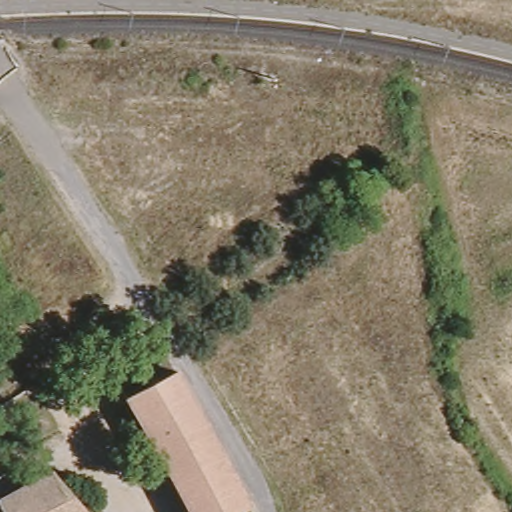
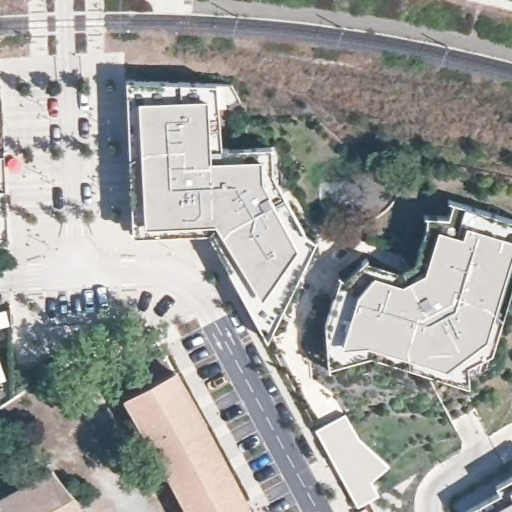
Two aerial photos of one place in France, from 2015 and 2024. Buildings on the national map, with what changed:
new [(7,241),(0,241),(0,80),(1,79),(7,241)]
new [(309,255),(294,276),(296,278),(285,291),(291,295),(278,318),(249,303),(253,295),(252,269),(238,272),(218,237),(226,228),(210,217),(166,219),(151,226),(144,212),(151,209),(143,193),(150,190),(142,173),(148,170),(140,152),(148,149),(139,132),(147,129),(140,113),(148,109),(139,92),(126,92),(126,80),(154,80),(231,84),(240,100),(231,105),(206,106),(207,122),(208,149),(228,148),(228,155),(243,154),(243,147),(271,146),(272,173),(279,185),(279,186),(305,232),(315,239),(309,255)]
new [(139,92),(148,109),(140,113),(147,129),(139,132),(148,149),(140,152),(148,170),(142,173),(150,190),(143,193),(151,209),(144,212),(151,226),(166,219),(210,217),(226,228),(213,243),(208,233),(132,236),(126,92),(139,92)]
new [(218,121),(219,148),(208,149),(207,122),(218,121)]
new [(424,371),(423,358),(408,360),(408,366),(388,360),(387,347),(370,348),(368,336),(351,337),(347,352),(327,354),(325,323),(334,294),(339,295),(348,283),(343,280),(364,260),(388,280),(402,284),(409,280),(412,270),(426,225),(426,215),(439,216),(448,216),(453,201),(512,219),(512,225),(504,235),(512,242),(512,255),(502,268),(508,274),(498,287),(509,295),(491,353),(485,355),(484,356),(467,365),(469,385),(424,371)]
new [(504,235),(512,225),(512,242),(504,235)]
new [(213,243),(218,237),(238,272),(252,269),(253,295),(249,303),(278,318),(266,340),(213,243)]
new [(344,362),(351,337),(368,336),(370,355),(344,362)]
unchanged [(253,505),(240,512),(192,512),(175,481),(145,425),(137,411),(131,401),(122,383),(140,374),(143,366),(153,361),(169,353),(172,359),(231,465),(253,505)]
demolished [(64,386),(45,398),(38,387),(36,383),(54,372),(64,386)]
new [(372,480),(379,494),(358,506),(321,439),(316,430),(345,413),(359,438),(390,465),(372,480)]
demolished [(0,426),(0,417),(4,423),(0,426)]
new [(464,511),(500,493),(495,483),(512,475),(512,512),(464,512),(464,511)]
unchanged [(0,509),(15,502),(35,490),(61,478),(85,506),(90,512),(0,512),(0,509)]
new [(366,508),(368,512),(358,512),(366,508)]

